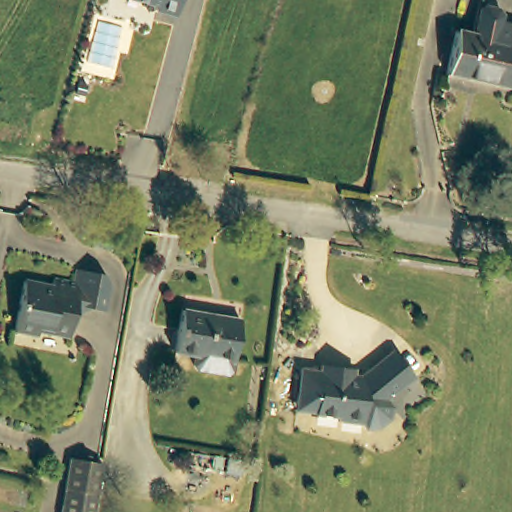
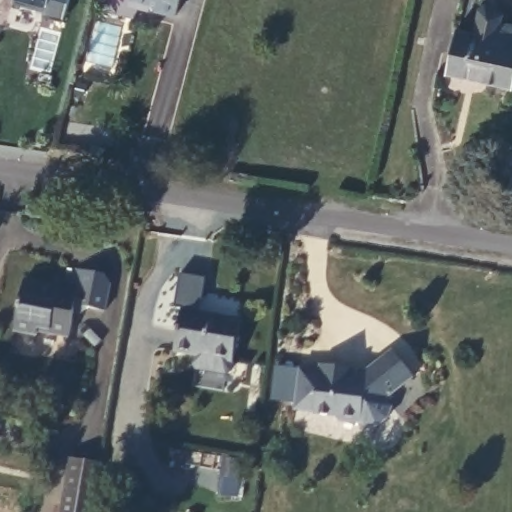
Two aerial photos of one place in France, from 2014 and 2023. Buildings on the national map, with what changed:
new [(67,3),(62,21),(41,16),(42,10),(13,2),(14,0),(68,0),(67,3)]
unchanged [(174,13),(152,7),(149,1),(145,0),(177,0),(174,13)]
unchanged [(475,35),(481,11),(487,7),(500,10),(503,16),(502,24),(512,26),(512,44),(475,35)]
unchanged [(510,90),(447,74),(458,31),(475,35),(512,44),(512,83),(510,90)]
unchanged [(16,330),(27,279),(55,285),(57,278),(72,281),(75,272),(102,277),(109,285),(104,310),(87,307),(85,314),(75,312),(71,336),(39,331),(38,335),(16,330)]
unchanged [(221,372),(192,367),(189,363),(191,353),(172,350),(179,308),(235,318),(229,354),(227,369),(221,372)]
unchanged [(299,404),(305,372),(325,375),(326,367),(345,370),(357,372),(356,379),(363,380),(397,354),(415,378),(389,403),(397,411),(395,426),(386,434),(370,434),(360,425),(338,421),(339,418),(332,418),(315,415),(316,413),(298,410),(299,404)]
unchanged [(102,464),(95,512),(63,512),(72,460),(102,464)]

